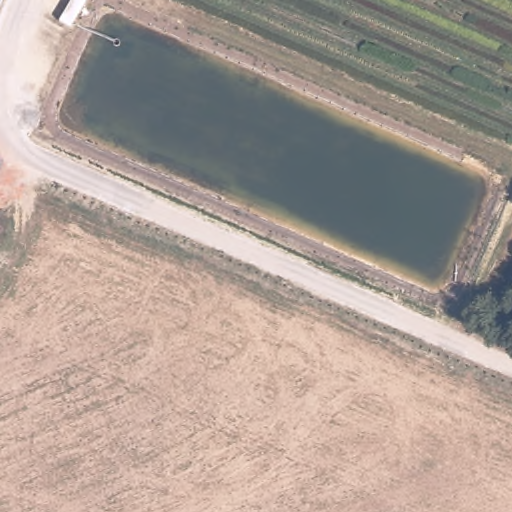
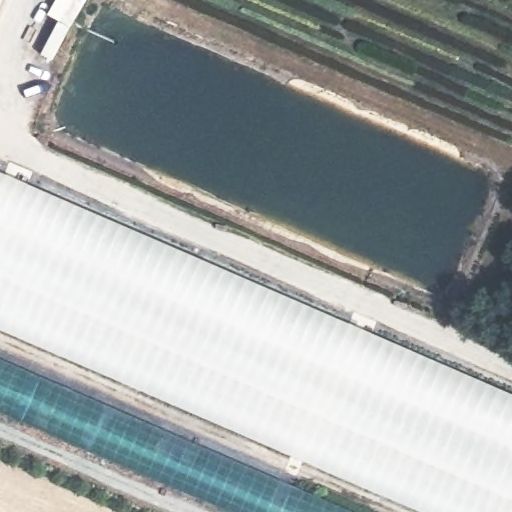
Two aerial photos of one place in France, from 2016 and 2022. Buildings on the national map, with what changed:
unchanged [(0,4),(0,0),(2,0),(0,4)]
new [(421,512),(0,330),(0,173),(512,395),(512,512),(421,512)]
new [(231,512),(0,412),(0,360),(351,512),(231,512)]

